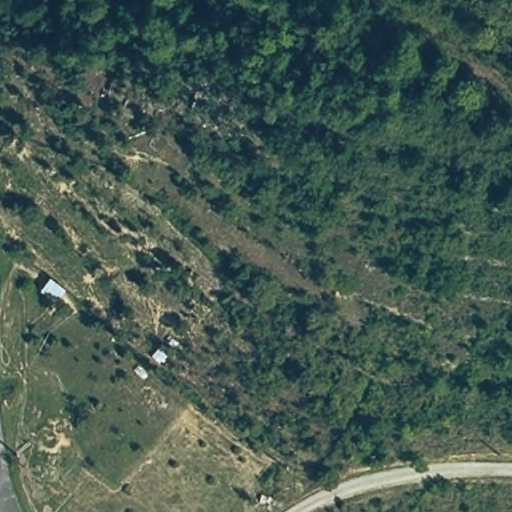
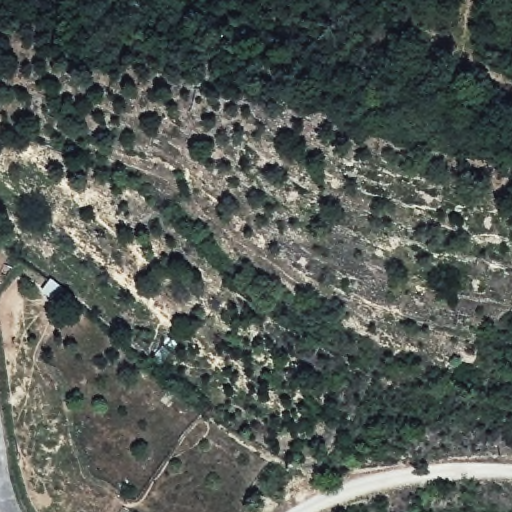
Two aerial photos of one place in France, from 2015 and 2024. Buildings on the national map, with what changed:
[]

